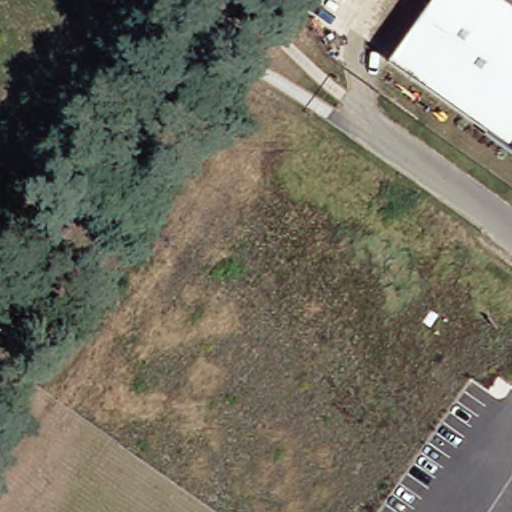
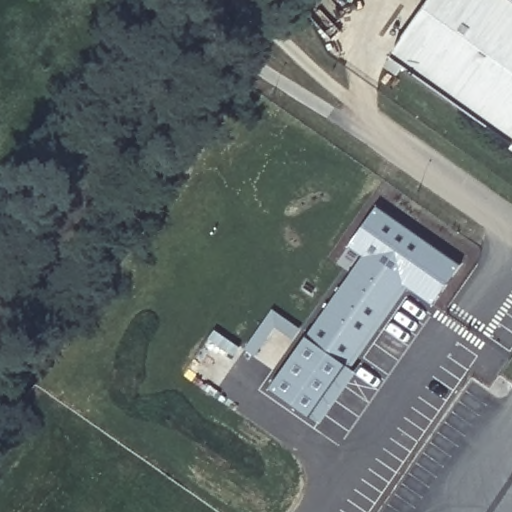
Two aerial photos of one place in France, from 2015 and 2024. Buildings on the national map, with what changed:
unchanged [(512,0),(512,142),(491,127),(391,58),(431,0),(512,0)]
unchanged [(512,142),(512,149),(487,132),(491,127),(512,142)]
new [(409,289),(352,370),(358,373),(322,425),(272,390),(365,257),(351,248),(378,209),(461,266),(433,306),(409,289)]

